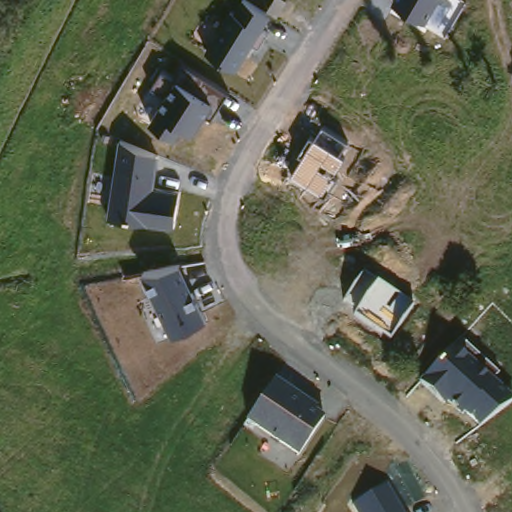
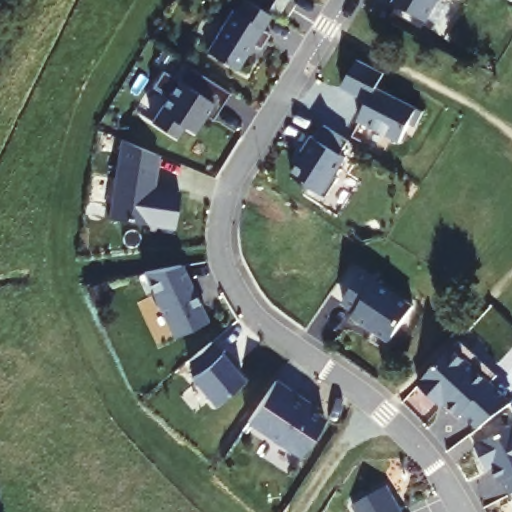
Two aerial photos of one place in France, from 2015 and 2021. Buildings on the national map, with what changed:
unchanged [(232,8),(235,11),(242,0),(250,0),(272,15),(265,29),(270,33),(261,48),(255,44),(239,70),(207,50),(232,8)]
unchanged [(440,0),(427,21),(393,1),(394,0),(440,0)]
new [(360,119),(370,102),(343,87),(360,61),(384,73),(376,89),(425,113),(416,128),(409,124),(400,142),(360,119)]
unchanged [(168,97),(154,88),(165,70),(177,77),(186,64),(230,93),(213,119),(206,114),(194,134),(183,127),(176,138),(151,121),(168,97)]
unchanged [(292,174),(304,157),(299,153),(311,135),(316,138),(324,126),(348,140),(340,154),(345,157),(335,173),(339,176),(325,195),(292,174)]
unchanged [(121,139),(159,154),(156,187),(180,191),(175,227),(109,220),(121,139)]
unchanged [(142,272),(184,264),(209,320),(174,336),(142,272)]
unchanged [(353,316),(358,309),(345,299),(363,271),(415,306),(391,340),(353,316)]
unchanged [(500,373),(493,382),(512,400),(512,404),(483,428),(465,413),(461,416),(445,401),(441,406),(420,384),(461,337),(500,373)]
new [(212,342),(221,353),(225,349),(237,364),(234,368),(244,380),(215,404),(192,377),(199,372),(189,361),(212,342)]
unchanged [(247,421),(275,379),(317,406),(315,410),(325,418),(300,456),(247,421)]
new [(512,493),(505,480),(500,482),(492,467),(490,469),(477,446),(471,435),(483,428),(512,404),(512,493)]
unchanged [(352,504),(388,483),(403,512),(357,512),(352,504)]

